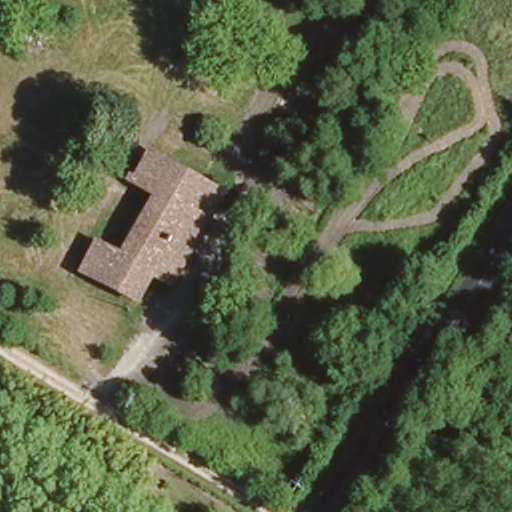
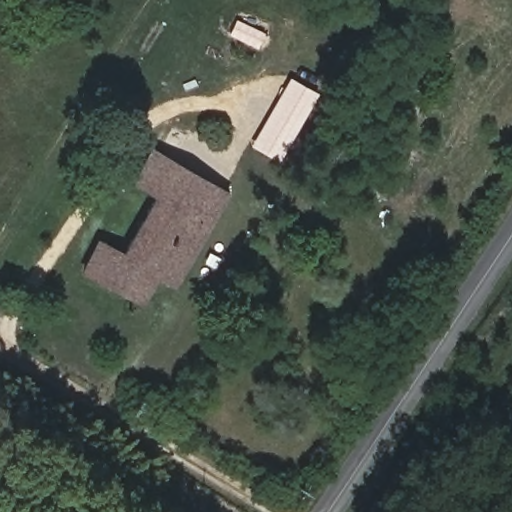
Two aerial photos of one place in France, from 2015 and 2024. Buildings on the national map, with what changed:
demolished [(267,10),(255,30),(236,21),(248,0),(249,0),(267,10)]
new [(278,163),(251,147),(286,85),(290,87),(292,83),(317,97),(278,163)]
unchanged [(177,290),(157,278),(142,307),(75,273),(95,237),(123,249),(152,193),(124,178),(146,144),(232,191),(177,290)]

